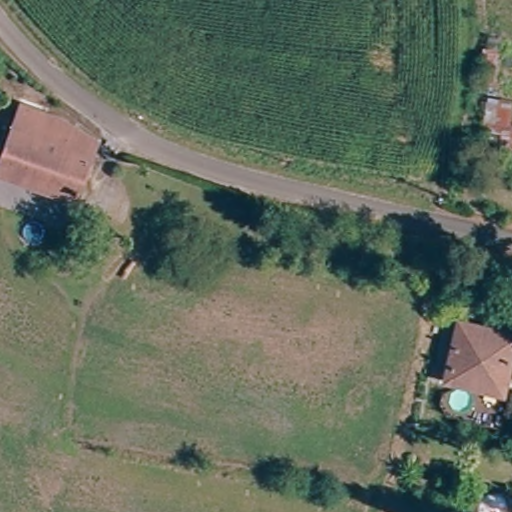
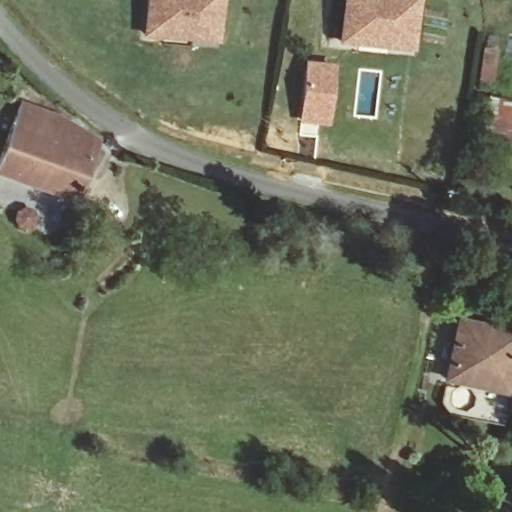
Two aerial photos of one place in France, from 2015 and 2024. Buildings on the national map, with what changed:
new [(144,40),(147,0),(224,0),(220,48),(144,40)]
new [(337,46),(341,0),(421,0),(414,55),(337,46)]
new [(512,124),(512,138),(483,134),(488,99),(512,104),(512,121),(511,124),(512,124)]
unchanged [(99,140),(75,202),(0,173),(0,154),(22,101),(60,116),(99,140)]
unchanged [(474,388),(445,380),(457,323),(512,336),(512,349),(505,380),(502,396),(474,388)]

